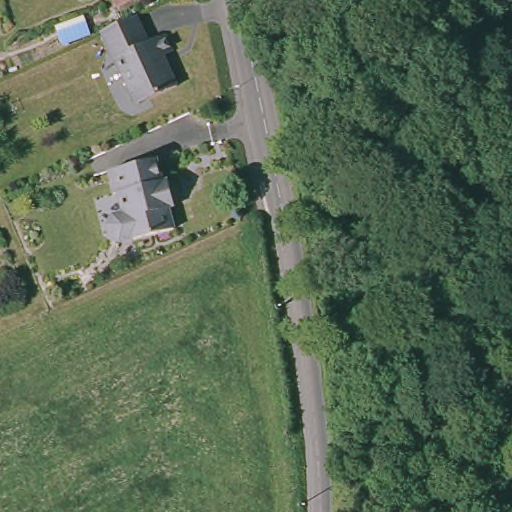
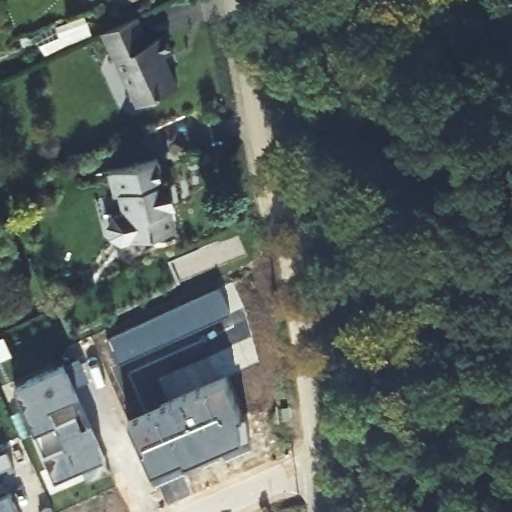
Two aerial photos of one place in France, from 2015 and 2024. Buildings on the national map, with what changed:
unchanged [(126,19),(139,46),(157,37),(165,55),(155,59),(170,90),(129,108),(95,33),(126,19)]
unchanged [(162,203),(164,204),(166,212),(161,213),(166,234),(123,244),(122,243),(112,246),(102,240),(100,229),(105,220),(116,217),(111,197),(106,198),(100,175),(148,163),(155,185),(159,184),(161,192),(159,194),(162,203)]
new [(230,307),(122,359),(110,336),(220,285),(230,307)]
new [(107,455),(57,478),(12,381),(65,361),(107,455)]
new [(241,412),(240,436),(155,475),(129,418),(226,377),(241,412)]
new [(15,511),(16,512),(0,512),(0,493),(11,488),(20,509),(15,511)]

